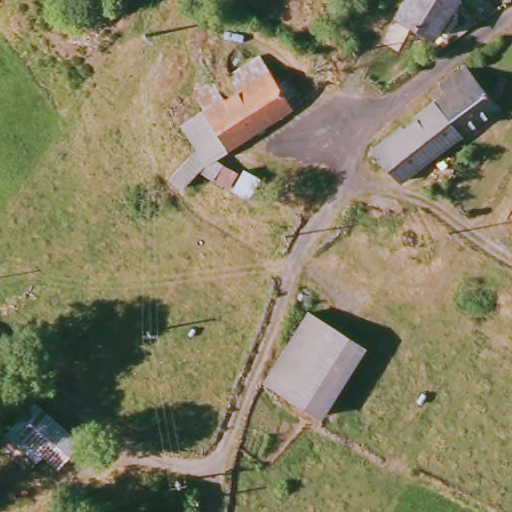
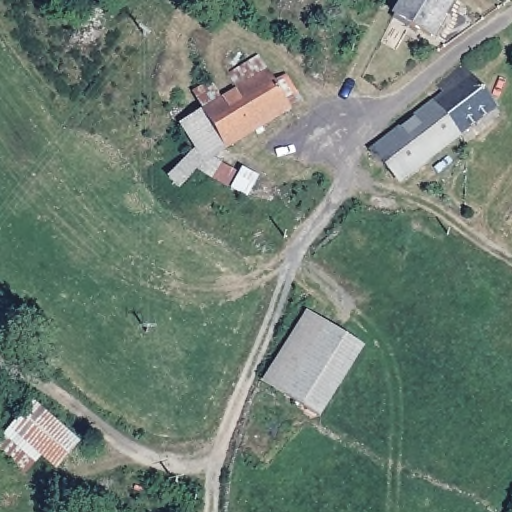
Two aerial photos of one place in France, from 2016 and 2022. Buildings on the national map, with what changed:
unchanged [(390,11),(397,0),(443,0),(447,2),(423,41),(409,32),(386,19),(390,11)]
unchanged [(177,192),(166,182),(187,159),(191,150),(180,128),(202,112),(192,99),(210,87),(218,101),(232,91),(223,77),(253,57),(262,71),(269,82),(283,72),(300,97),(286,109),(204,167),(202,167),(177,192)]
unchanged [(365,160),(437,102),(428,95),(458,72),(492,114),(398,191),(365,160)]
unchanged [(237,175),(235,179),(230,190),(213,182),(220,167),(237,175)]
unchanged [(304,318),(357,352),(318,421),(265,387),(304,318)]
unchanged [(79,445),(55,474),(41,461),(20,472),(0,451),(0,434),(33,397),(79,445)]

